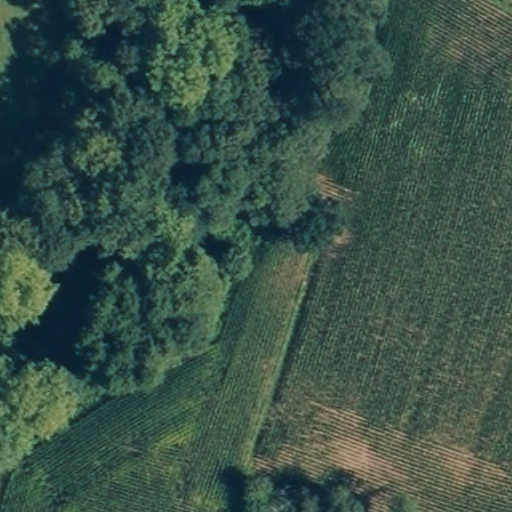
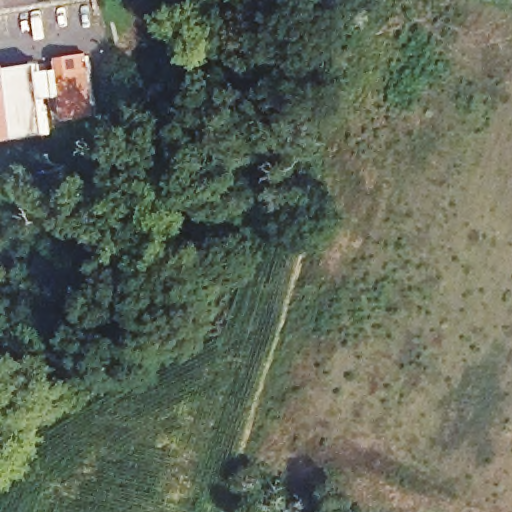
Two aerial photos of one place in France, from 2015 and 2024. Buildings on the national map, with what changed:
new [(69,122),(59,62),(92,57),(101,115),(69,122)]
new [(0,71),(42,66),(52,135),(0,144),(0,71)]

